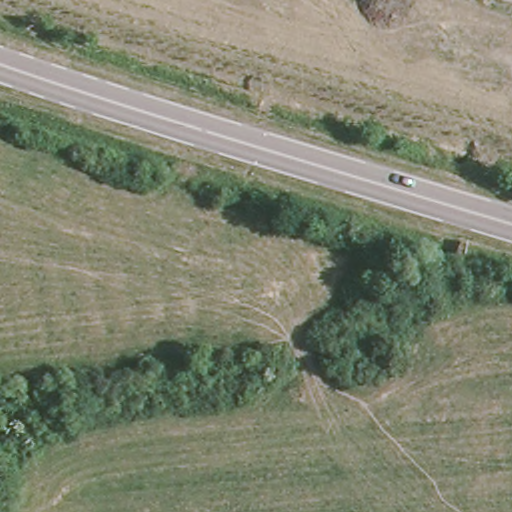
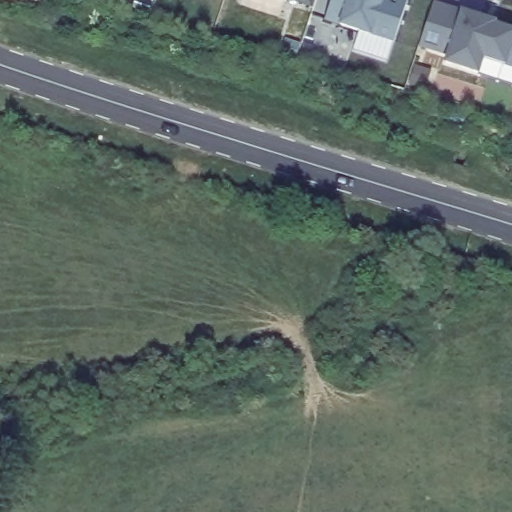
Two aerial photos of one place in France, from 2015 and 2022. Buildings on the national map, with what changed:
new [(315,10),(287,1),(286,3),(277,0),(318,0),(315,10)]
new [(330,0),(409,0),(395,44),(372,38),(339,28),(340,24),(324,20),(330,0)]
new [(433,3),(461,11),(497,21),(496,25),(512,30),(512,69),(506,68),(484,61),(480,76),(445,65),(447,54),(419,47),(433,3)]

